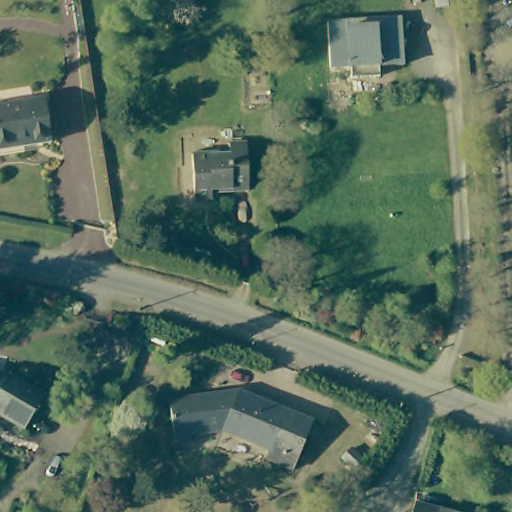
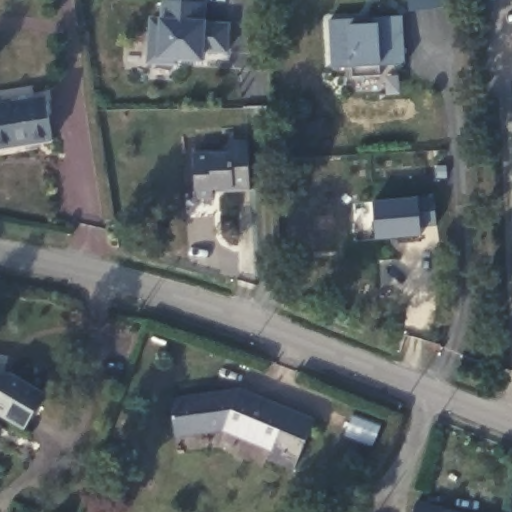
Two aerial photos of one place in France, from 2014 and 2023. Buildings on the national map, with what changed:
new [(161,18),(161,1),(206,3),(206,21),(206,23),(229,24),(227,53),(203,53),(202,63),(177,61),(177,66),(147,64),(149,18),(161,18)]
unchanged [(382,60),(382,71),(350,74),(350,62),(327,63),(325,17),(348,16),(403,12),(404,33),(406,58),(382,60)]
unchanged [(52,141),(0,149),(0,105),(46,98),(52,141)]
unchanged [(247,141),(249,189),(212,191),(212,199),(194,199),(192,152),(230,150),(230,142),(247,141)]
new [(421,229),(421,237),(375,239),(371,202),(418,198),(435,197),(437,227),(421,229)]
unchanged [(14,371),(48,392),(27,428),(0,413),(0,372),(12,374),(14,371)]
unchanged [(292,472),(265,461),(268,453),(222,434),(173,440),(169,403),(238,395),(312,424),(292,472)]
unchanged [(443,512),(414,512),(416,504),(443,512)]

